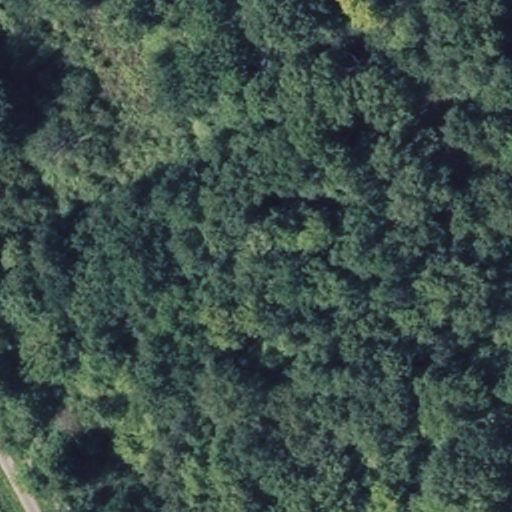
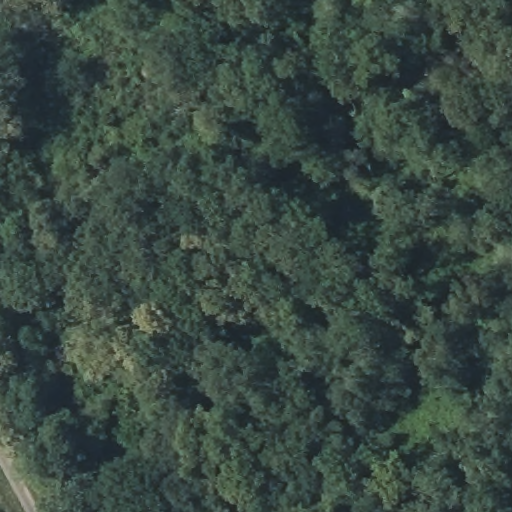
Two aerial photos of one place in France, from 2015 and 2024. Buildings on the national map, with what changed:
[]

